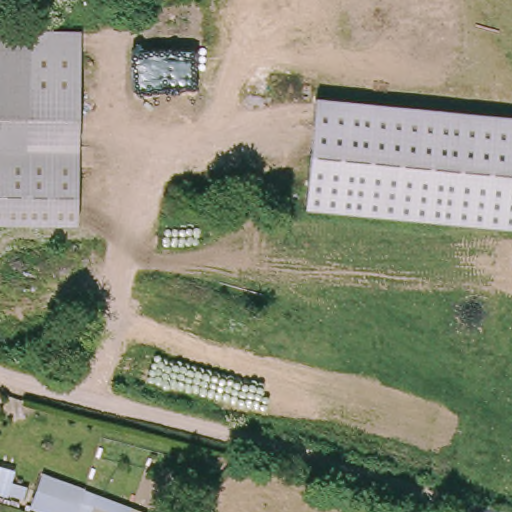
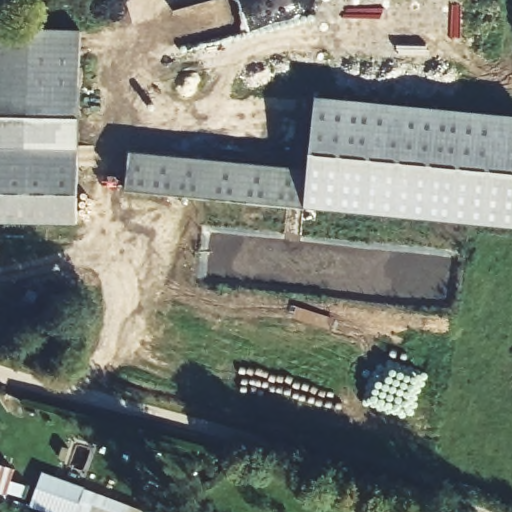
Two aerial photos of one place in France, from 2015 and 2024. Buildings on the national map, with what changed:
unchanged [(83,190),(83,230),(0,232),(0,30),(79,29),(83,190)]
unchanged [(316,97),(512,116),(512,228),(304,207),(316,97)]
new [(126,191),(129,152),(309,170),(304,207),(126,191)]
unchanged [(126,512),(45,512),(30,507),(43,472),(128,503),(126,512)]

